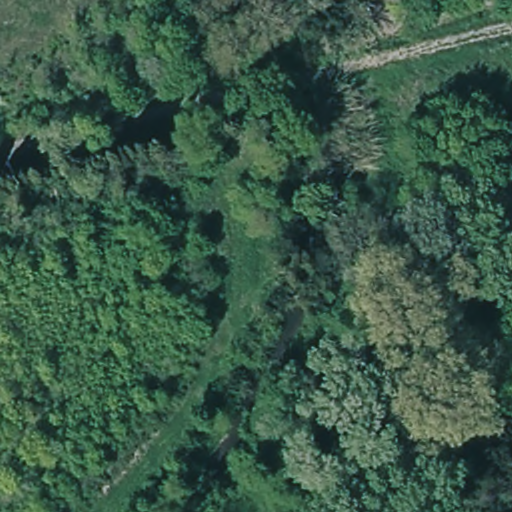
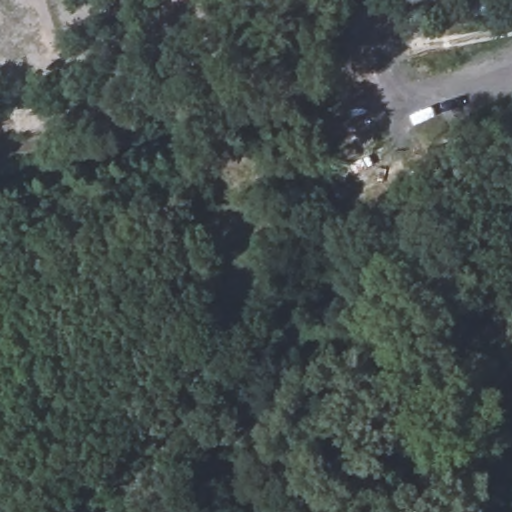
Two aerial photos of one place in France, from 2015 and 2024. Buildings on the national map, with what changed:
unchanged [(261,0),(268,0),(265,3),(261,0)]

